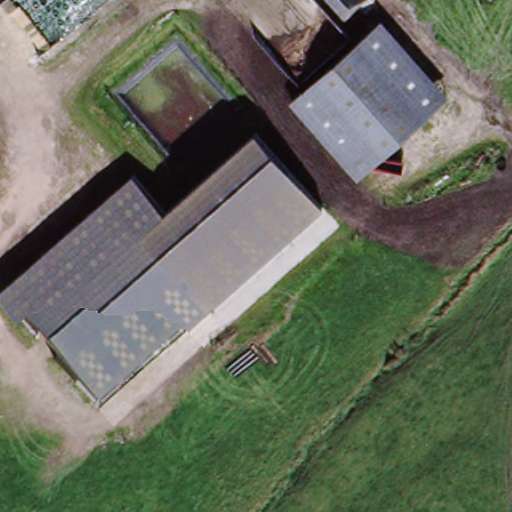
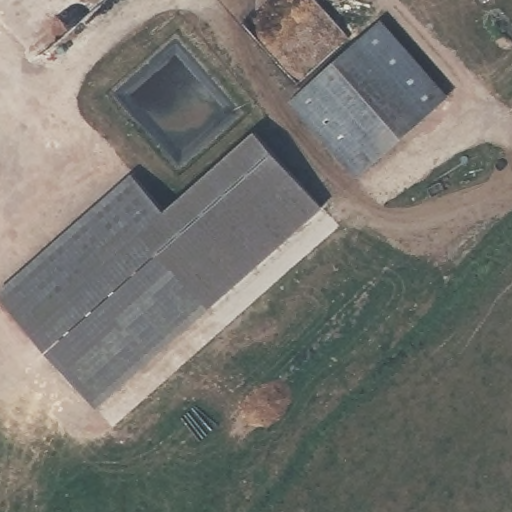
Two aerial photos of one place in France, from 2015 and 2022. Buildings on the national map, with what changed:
unchanged [(332,0),(362,0),(345,15),(332,0)]
unchanged [(448,95),(356,179),(289,102),(380,20),(448,95)]
unchanged [(322,209),(213,311),(146,232),(260,135),(322,209)]
unchanged [(146,232),(210,307),(98,407),(0,299),(0,290),(132,174),(163,217),(146,232)]

